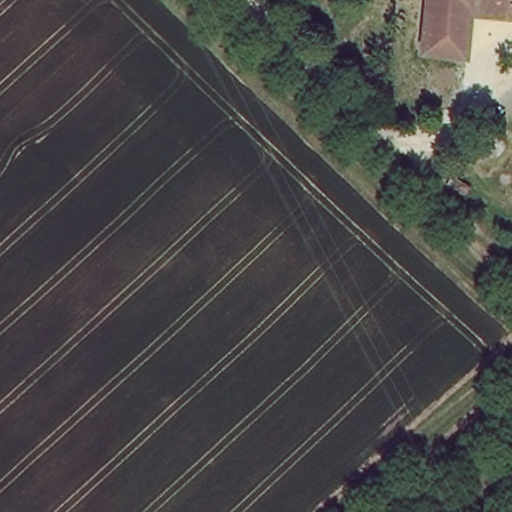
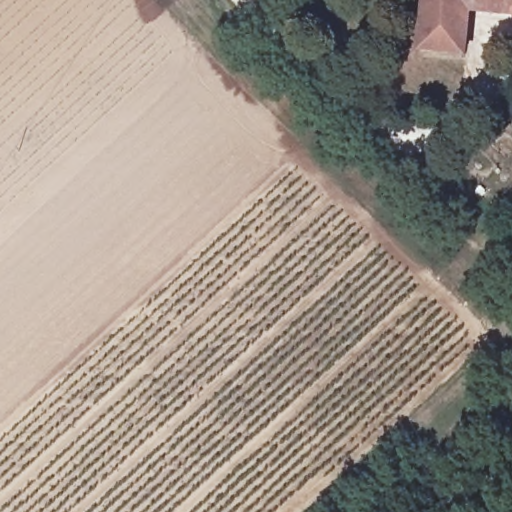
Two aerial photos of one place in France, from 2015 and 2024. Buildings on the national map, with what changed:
unchanged [(512,0),(512,18),(471,15),(427,11),(428,0),(512,0)]
unchanged [(467,60),(423,56),(427,11),(471,15),(467,60)]

